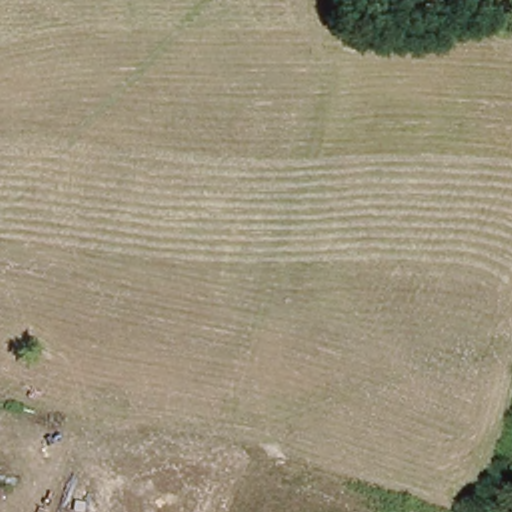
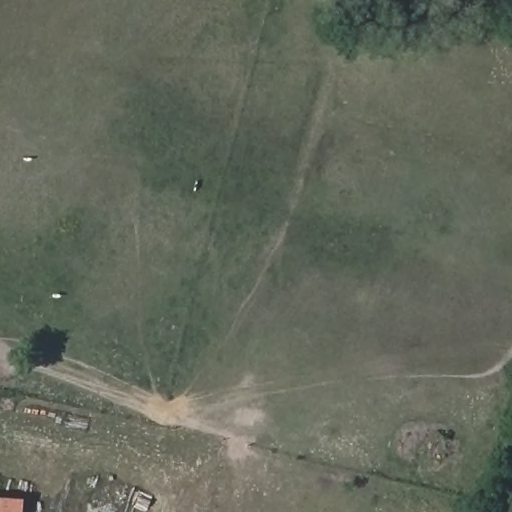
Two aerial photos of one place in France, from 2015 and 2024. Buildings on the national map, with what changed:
new [(22,498),(21,512),(0,512),(0,496),(22,498)]

